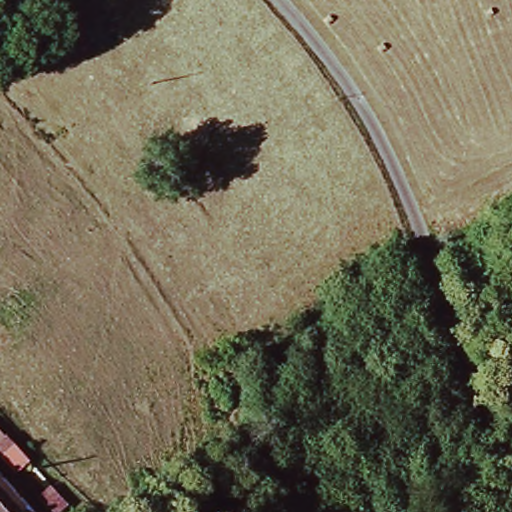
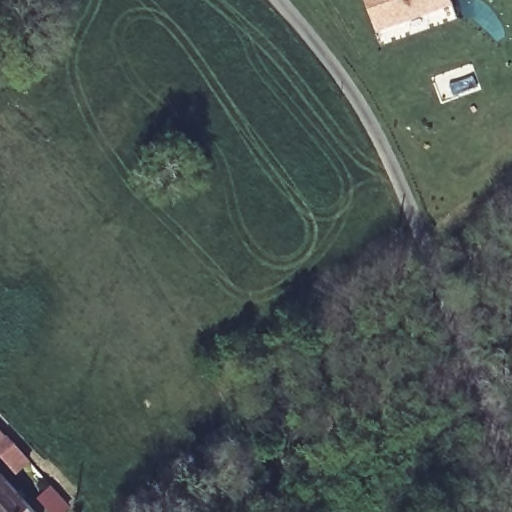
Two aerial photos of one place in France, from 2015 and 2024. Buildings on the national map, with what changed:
new [(379,44),(364,0),(447,0),(453,19),(379,44)]
unchanged [(9,442),(13,438),(30,459),(13,473),(0,459),(0,450),(9,442)]
unchanged [(28,512),(0,512),(0,481),(28,512)]
unchanged [(29,499),(44,484),(63,504),(53,512),(41,512),(29,499)]

